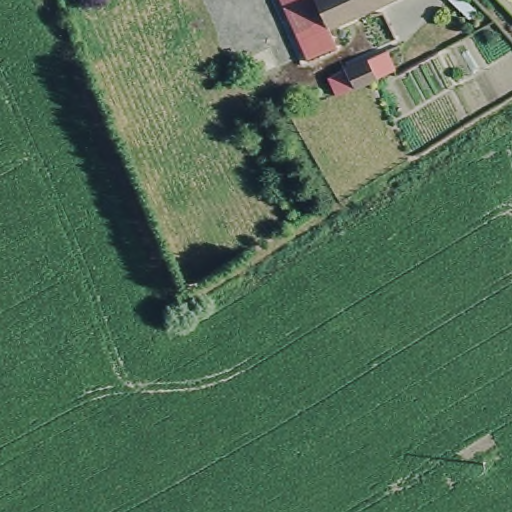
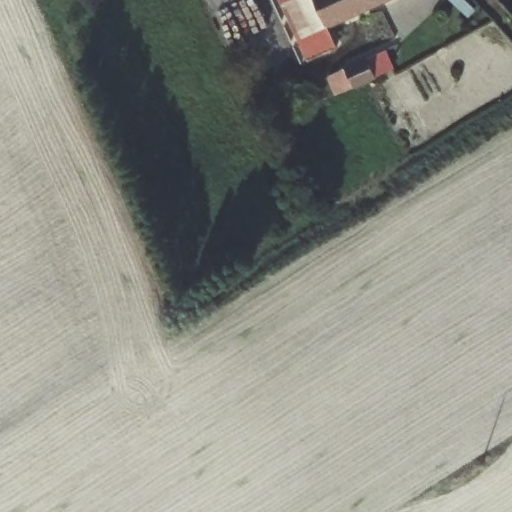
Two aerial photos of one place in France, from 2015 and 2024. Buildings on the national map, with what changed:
unchanged [(302,63),(275,0),(393,0),(326,29),(334,49),(311,59),(302,63)]
unchanged [(333,95),(326,77),(382,53),(391,69),(375,77),(333,95)]

